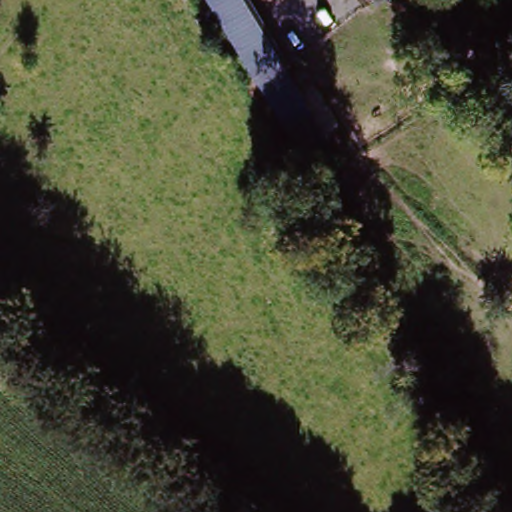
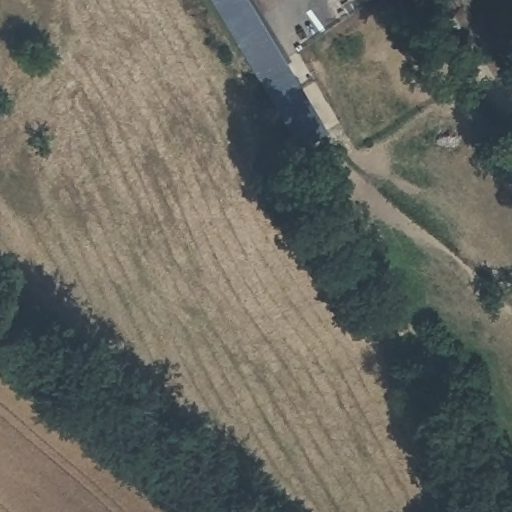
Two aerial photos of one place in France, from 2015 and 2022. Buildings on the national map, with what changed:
unchanged [(272,96),(214,0),(244,0),(295,83),(272,96)]

